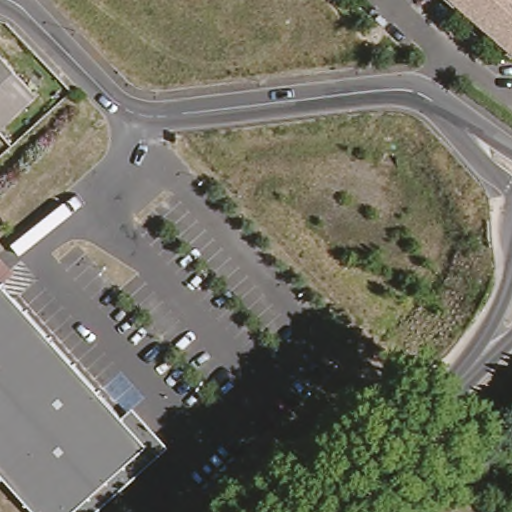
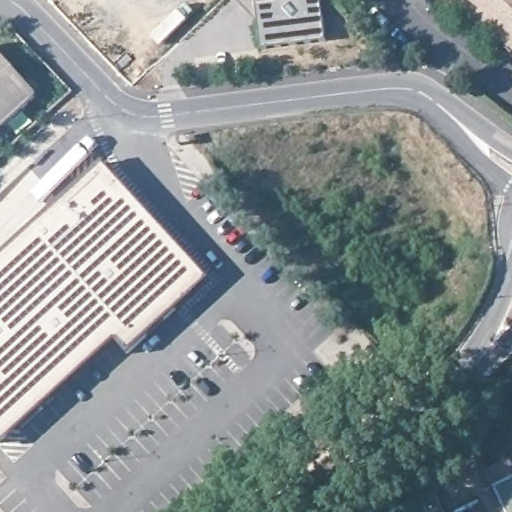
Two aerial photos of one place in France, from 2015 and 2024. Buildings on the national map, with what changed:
new [(238,0),(321,0),(326,40),(262,49),(258,21),(243,6),(238,0)]
unchanged [(451,0),(512,0),(512,54),(451,0)]
unchanged [(0,137),(0,59),(39,103),(0,137)]
new [(119,195),(188,271),(165,292),(180,308),(131,352),(116,336),(0,441),(0,259),(108,161),(130,185),(119,195)]
new [(214,277),(180,308),(165,292),(188,271),(119,195),(130,185),(214,277)]
demolished [(0,285),(1,284),(121,418),(131,408),(166,448),(96,512),(33,512),(0,475),(0,285)]
new [(507,512),(491,478),(512,467),(512,512),(507,512)]
new [(491,478),(507,512),(485,512),(482,505),(468,512),(444,512),(435,493),(487,470),(491,478)]

